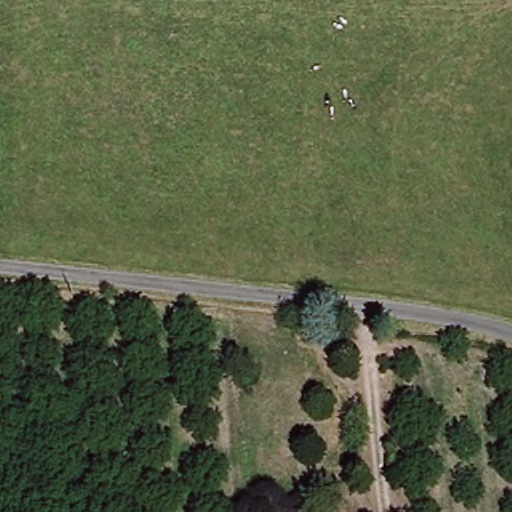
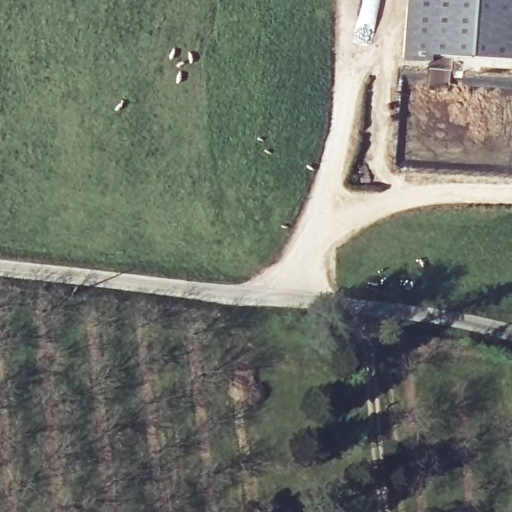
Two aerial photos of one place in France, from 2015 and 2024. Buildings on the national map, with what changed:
new [(512,55),(407,47),(409,0),(512,0),(512,55)]

